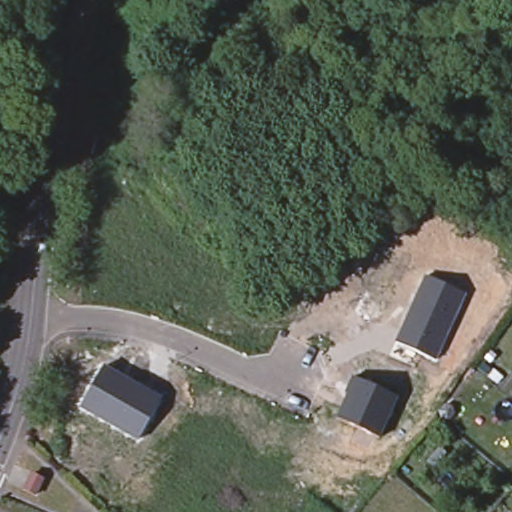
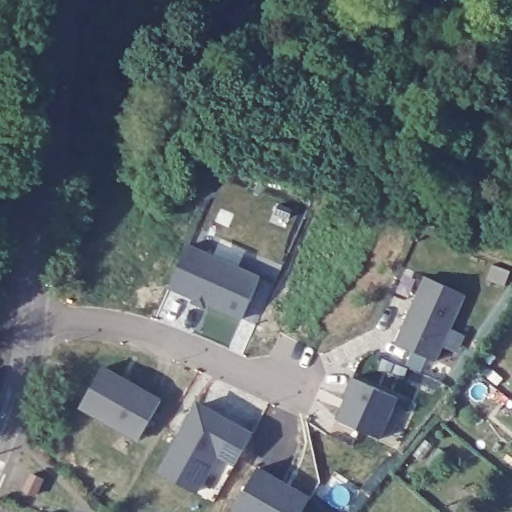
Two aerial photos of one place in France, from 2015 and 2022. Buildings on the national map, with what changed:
new [(187,246),(260,278),(242,319),(169,287),(187,246)]
unchanged [(465,295),(437,361),(395,343),(424,278),(465,295)]
unchanged [(138,440),(78,410),(105,367),(164,397),(138,440)]
unchanged [(400,397),(383,438),(337,420),(353,378),(400,397)]
new [(255,432),(235,467),(219,458),(198,495),(157,473),(198,401),(255,432)]
unchanged [(34,499),(24,494),(32,477),(42,482),(34,499)]

